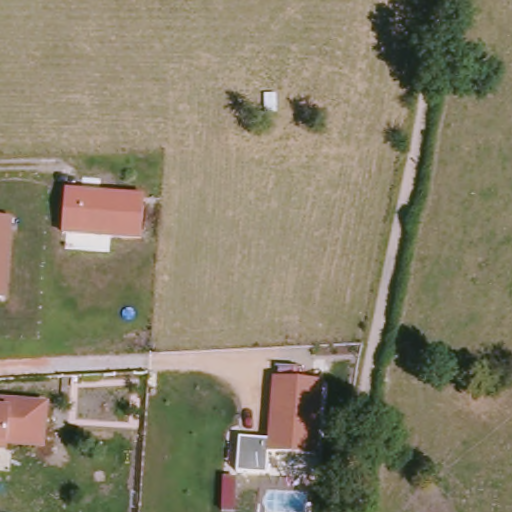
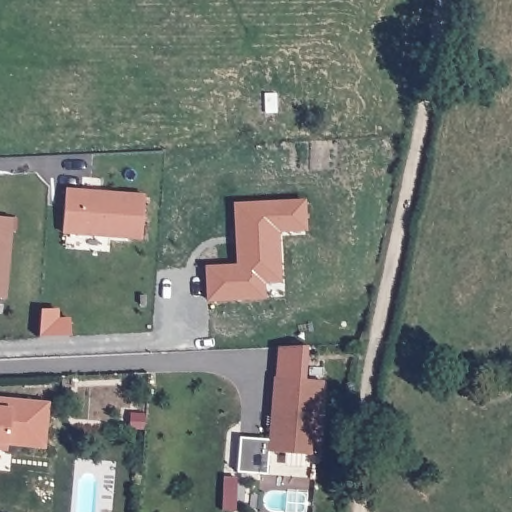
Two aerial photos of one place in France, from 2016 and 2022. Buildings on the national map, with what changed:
unchanged [(67,191),(147,198),(143,242),(62,235),(67,191)]
new [(236,243),(240,242),(239,227),(235,227),(234,205),(303,201),(304,230),(305,245),(277,246),(278,266),(261,267),(262,298),(207,300),(205,268),(237,266),(236,243)]
unchanged [(14,220),(7,302),(0,301),(0,219),(14,220)]
new [(40,312),(55,313),(55,325),(70,325),(70,337),(37,338),(40,312)]
unchanged [(239,437),(267,438),(272,377),(322,380),(315,455),(267,453),(266,473),(237,471),(239,437)]
unchanged [(43,444),(8,440),(7,446),(0,445),(0,398),(47,402),(43,444)]

